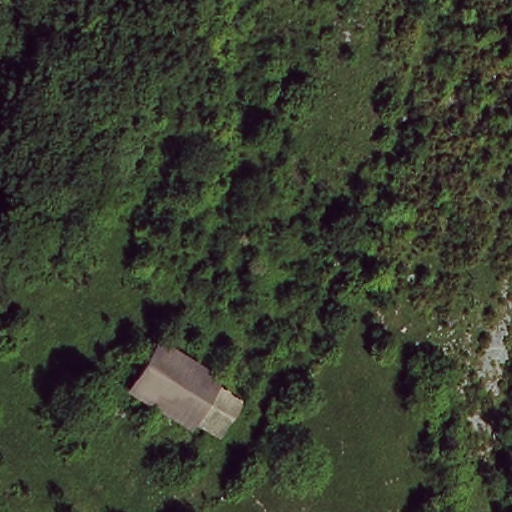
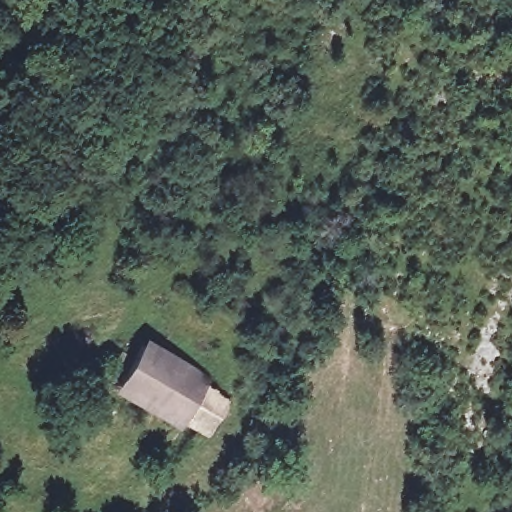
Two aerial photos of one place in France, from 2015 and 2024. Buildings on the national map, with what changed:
unchanged [(151,350),(244,411),(228,437),(218,442),(118,376),(136,348),(139,343),(151,350)]

